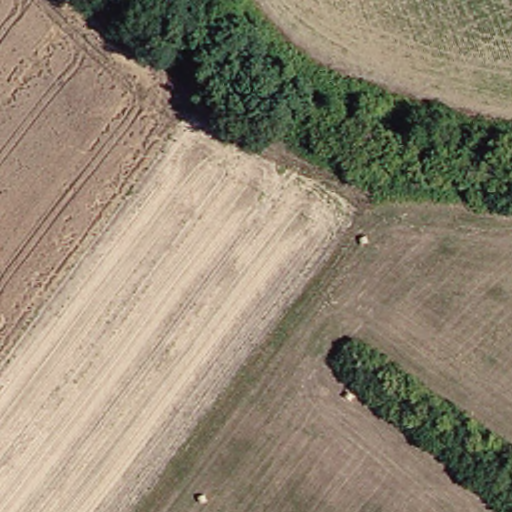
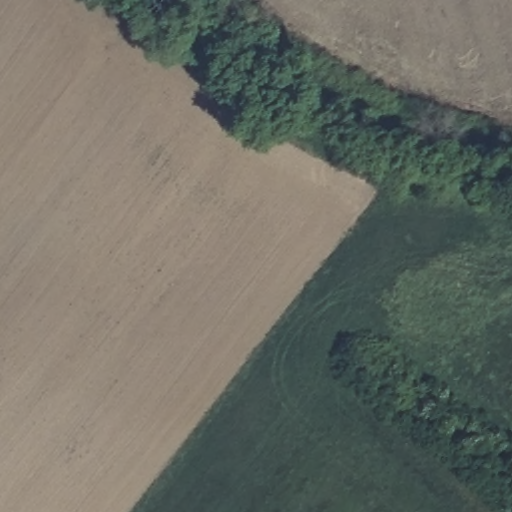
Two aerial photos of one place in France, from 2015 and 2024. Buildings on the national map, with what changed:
unchanged [(182,12),(171,0),(195,0),(182,12)]

